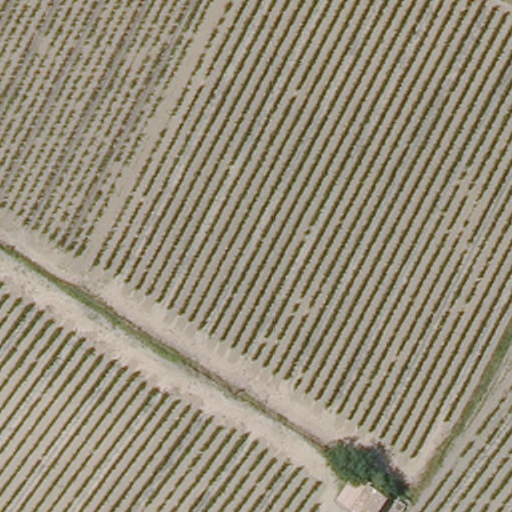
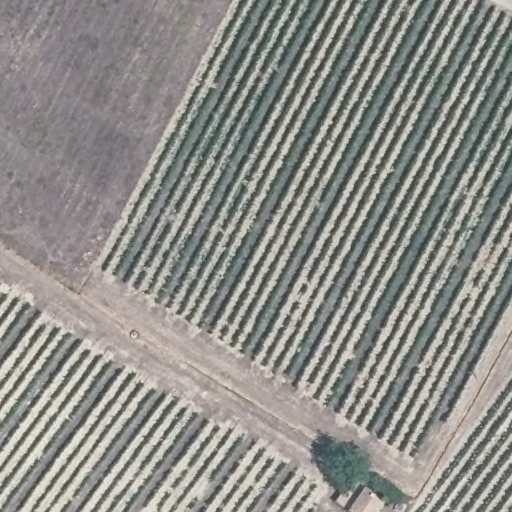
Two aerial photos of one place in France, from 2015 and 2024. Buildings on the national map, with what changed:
unchanged [(380,489),(377,494),(391,503),(385,512),(351,512),(346,508),(363,478),(380,489)]

